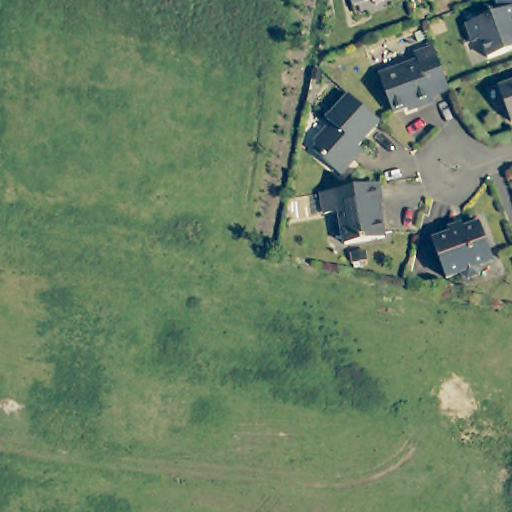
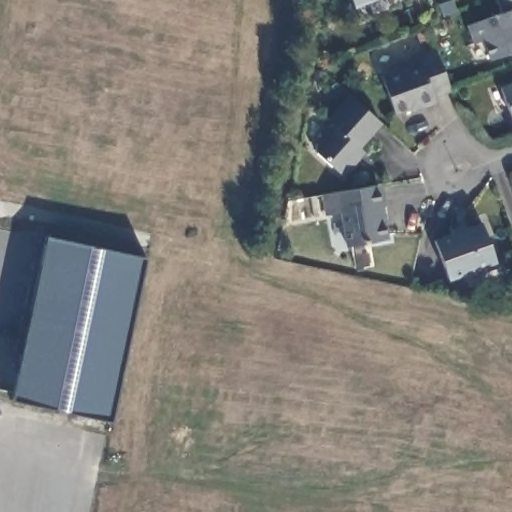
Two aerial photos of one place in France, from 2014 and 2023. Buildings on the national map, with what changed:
unchanged [(353,0),(360,0),(353,3),(353,0)]
unchanged [(477,51),(465,55),(458,36),(492,24),(486,9),(509,1),(510,0),(512,0),(512,59),(484,69),(477,51)]
unchanged [(450,89),(434,96),(436,103),(416,110),(414,105),(393,113),(379,76),(418,60),(415,54),(435,48),(450,89)]
unchanged [(512,82),(512,118),(499,87),(512,82)]
unchanged [(381,122),(355,153),(359,159),(342,177),(313,150),(334,125),(328,121),(350,95),(381,122)]
unchanged [(388,239),(346,246),(341,213),(325,215),(322,194),(379,185),(388,239)]
unchanged [(466,278),(462,275),(459,269),(442,275),(429,235),(448,229),(446,223),(459,219),(461,223),(474,218),(490,258),(476,263),(477,274),(466,278)]
new [(109,420),(10,400),(47,236),(144,256),(109,420)]

